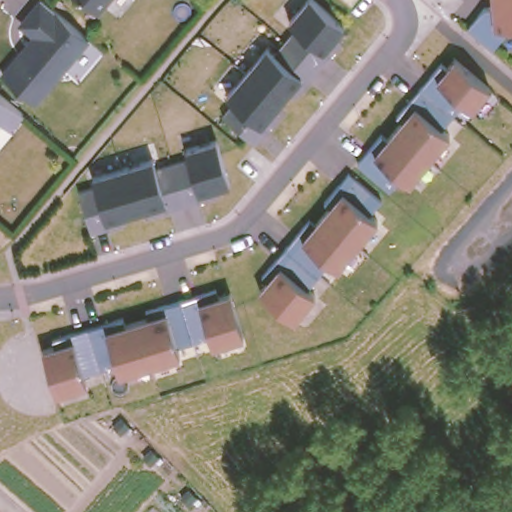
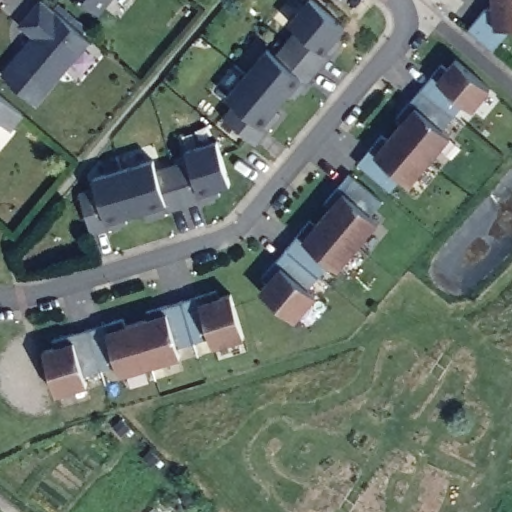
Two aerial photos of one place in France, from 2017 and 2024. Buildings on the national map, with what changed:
unchanged [(80,0),(108,0),(96,14),(80,0)]
unchanged [(348,26),(338,37),(344,43),(295,100),(290,95),(276,111),(283,116),(256,147),(223,119),(236,103),(226,97),(267,47),(274,53),(297,30),(288,22),(306,0),(315,0),(348,26)]
unchanged [(512,31),(494,52),(468,30),(486,8),(492,8),(491,0),(512,0),(512,31)]
unchanged [(0,76),(0,70),(26,41),(11,27),(39,1),(88,42),(33,104),(0,76)]
unchanged [(447,66),(455,57),(492,87),(473,110),(464,104),(445,130),(451,135),(412,186),(403,179),(392,194),(358,166),(383,135),(387,137),(402,121),(397,117),(442,62),(447,66)]
unchanged [(23,117),(13,130),(0,123),(0,99),(23,117)]
unchanged [(230,185),(218,189),(221,197),(151,219),(148,210),(128,216),(131,226),(93,237),(79,192),(95,189),(92,177),(154,159),(156,167),(188,158),(186,149),(216,139),(230,185)]
unchanged [(384,201),(373,215),(379,220),(339,270),(331,264),(310,290),(316,296),(296,321),(258,290),(266,280),(263,276),(311,219),(315,222),(329,205),(325,202),(349,172),(384,201)]
unchanged [(246,338),(213,348),(209,337),(178,347),(181,357),(119,376),(116,365),(84,374),(88,385),(55,396),(43,349),(54,345),(52,338),(124,316),(126,322),(146,317),(144,310),(219,288),(221,293),(231,292),(246,338)]

